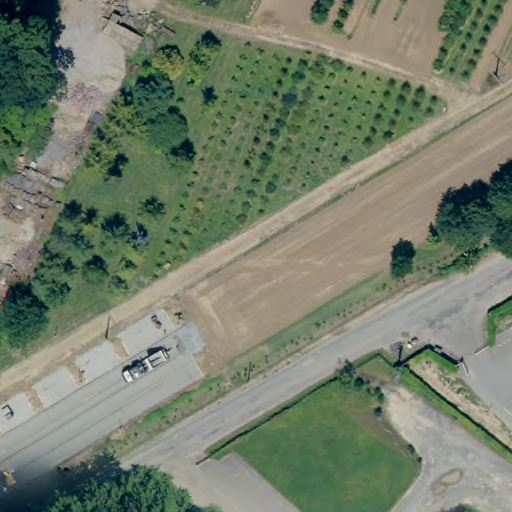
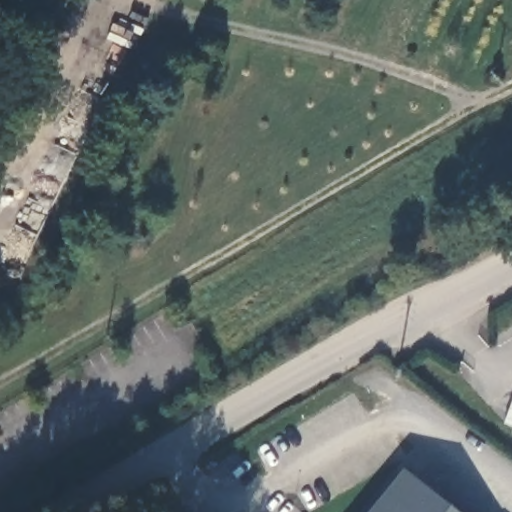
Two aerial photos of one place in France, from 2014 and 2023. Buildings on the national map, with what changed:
new [(461,512),(366,512),(401,467),(461,512)]

